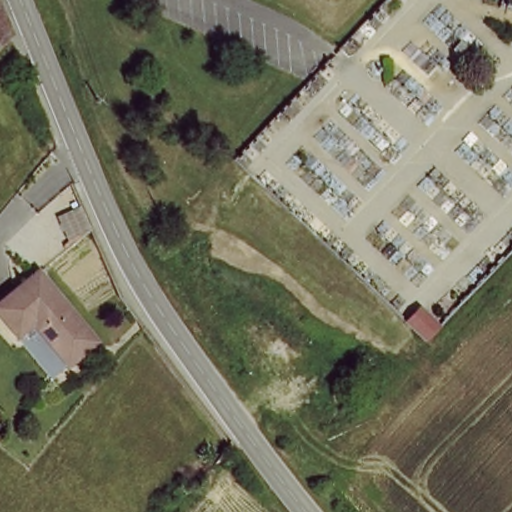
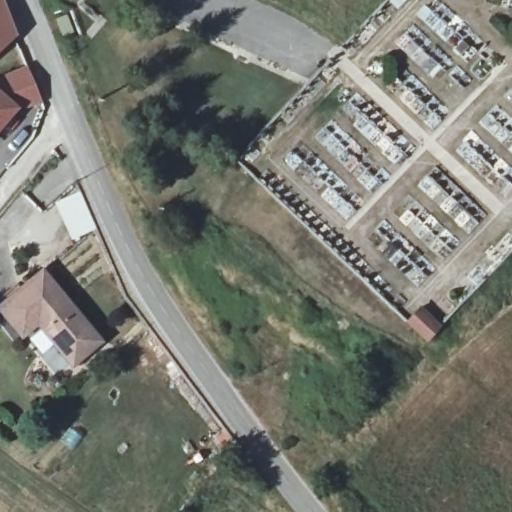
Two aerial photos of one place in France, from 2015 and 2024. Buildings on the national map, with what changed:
unchanged [(0,46),(0,0),(2,0),(13,34),(0,46)]
new [(41,107),(15,116),(0,129),(0,84),(30,74),(41,107)]
unchanged [(103,342),(71,365),(43,325),(25,336),(2,306),(51,271),(103,342)]

